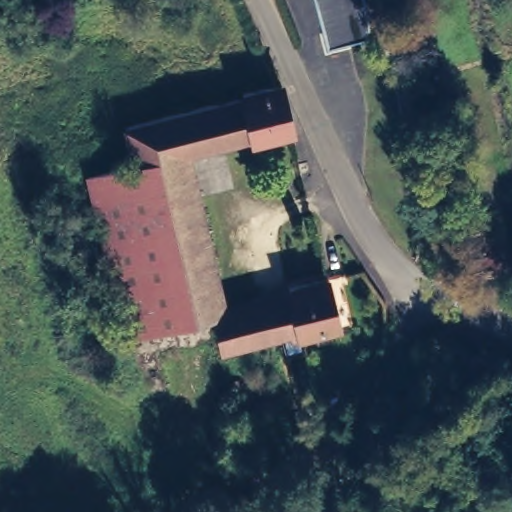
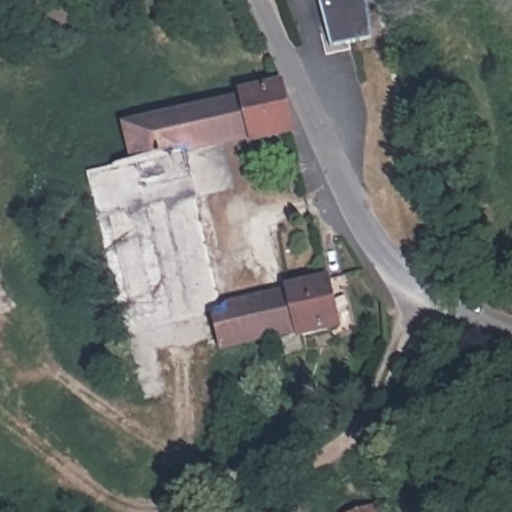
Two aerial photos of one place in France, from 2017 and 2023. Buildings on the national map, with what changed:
unchanged [(364,0),(368,35),(359,37),(327,43),(327,40),(317,0),(364,0)]
unchanged [(240,98),(239,94),(277,84),(287,133),(288,134),(250,143),(249,137),(182,152),(132,164),(125,133),(125,128),(240,98)]
unchanged [(182,152),(220,313),(210,316),(170,326),(132,164),(182,152)]
unchanged [(125,337),(87,177),(132,164),(170,326),(125,337)]
unchanged [(287,297),(285,290),(323,281),(335,328),(296,338),(295,336),(287,338),(287,335),(279,337),(220,350),(210,316),(220,313),(287,297)]
unchanged [(230,386),(260,378),(269,415),(240,423),(230,386)]
unchanged [(384,500),(389,512),(356,512),(384,500)]

